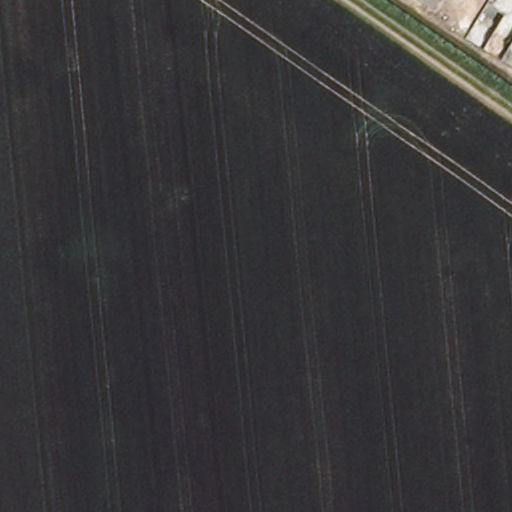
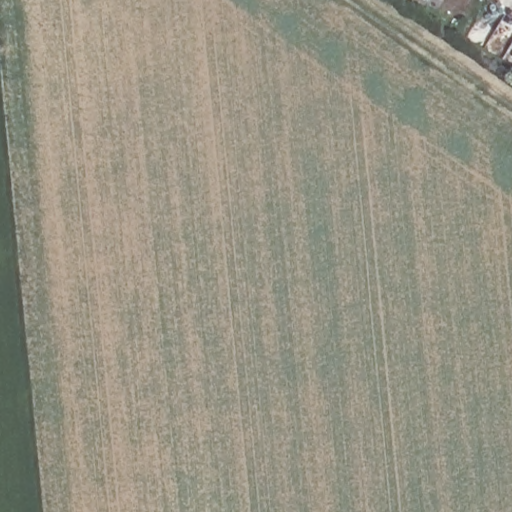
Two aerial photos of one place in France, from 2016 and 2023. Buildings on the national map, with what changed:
unchanged [(412,0),(416,0),(415,2),(412,0)]

